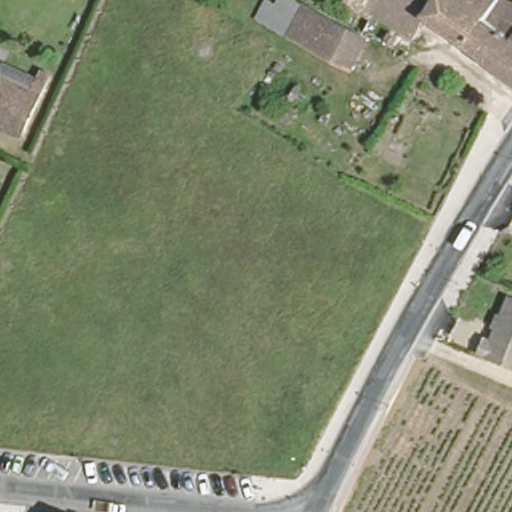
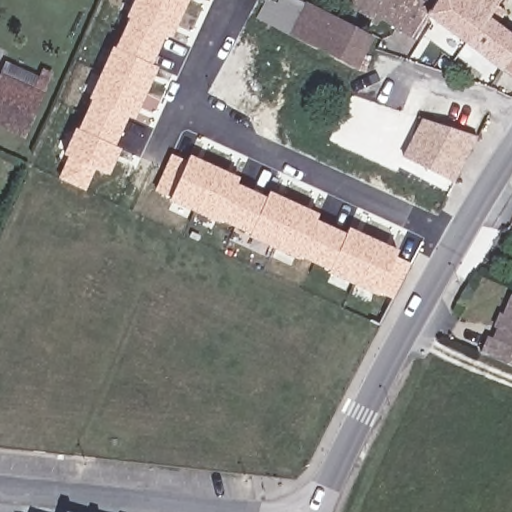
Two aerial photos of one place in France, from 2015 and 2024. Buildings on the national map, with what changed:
new [(66,155),(77,130),(79,132),(92,100),(91,100),(112,48),(115,50),(128,18),(126,17),(134,0),(184,0),(167,37),(162,34),(147,65),(154,67),(132,119),(125,116),(112,147),(118,150),(107,175),(93,169),(83,191),(61,181),(71,158),(66,155)]
unchanged [(270,0),(280,0),(282,1),(283,0),(312,0),(297,31),(263,14),(270,0)]
unchanged [(376,34),(360,65),(297,31),(312,0),(376,34)]
unchanged [(416,34),(375,9),(380,0),(512,0),(512,72),(430,11),(416,34)]
unchanged [(387,34),(392,27),(401,34),(396,40),(387,34)]
unchanged [(19,131),(0,123),(0,59),(1,57),(36,74),(38,67),(46,70),(19,131)]
new [(426,112),(477,139),(454,184),(402,157),(426,112)]
new [(381,289),(380,292),(331,270),(332,267),(301,254),(300,257),(250,235),(252,232),(221,219),(219,221),(170,200),(172,197),(156,190),(171,157),(186,164),(189,158),(238,180),(236,185),(266,199),(268,193),(318,215),(316,221),(346,235),(349,229),(398,250),(396,256),(411,263),(395,296),(381,289)]
unchanged [(496,356),(483,350),(490,335),(495,337),(512,299),(512,363),(496,356)]

